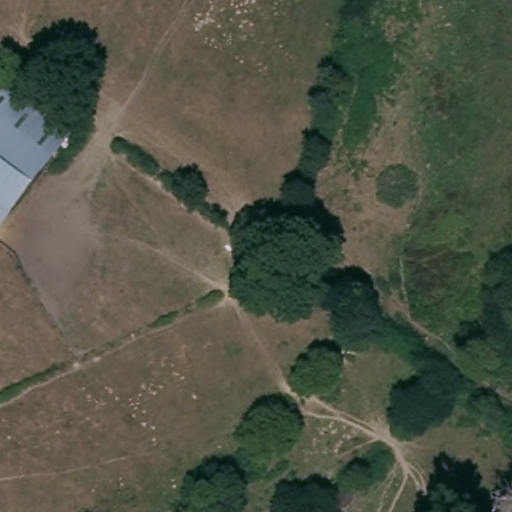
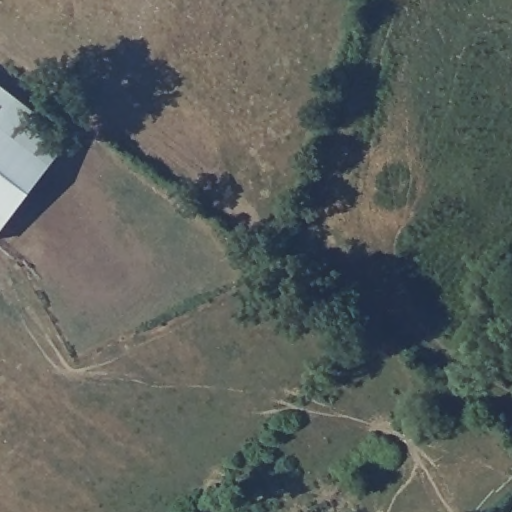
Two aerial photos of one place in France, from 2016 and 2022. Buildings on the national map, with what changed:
unchanged [(72,134),(0,236),(0,82),(72,134)]

